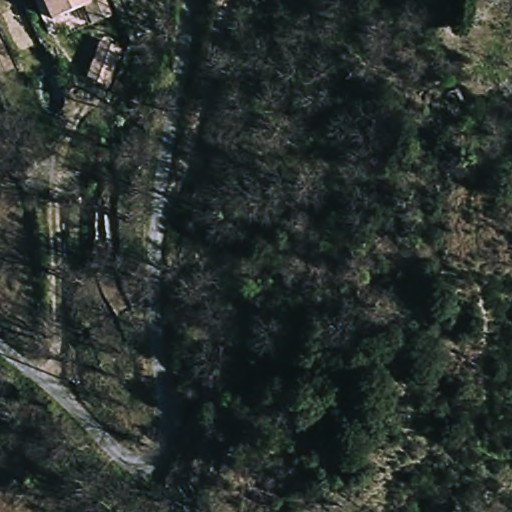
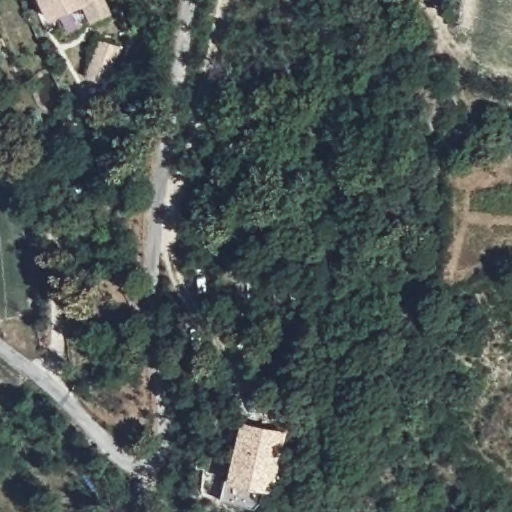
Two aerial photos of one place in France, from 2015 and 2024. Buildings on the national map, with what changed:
unchanged [(41,0),(105,0),(111,15),(92,22),(89,5),(52,20),(41,0)]
unchanged [(108,86),(86,79),(99,41),(122,48),(108,86)]
new [(286,432),(273,492),(263,491),(261,502),(254,507),(221,499),(227,476),(229,476),(243,422),(286,432)]

